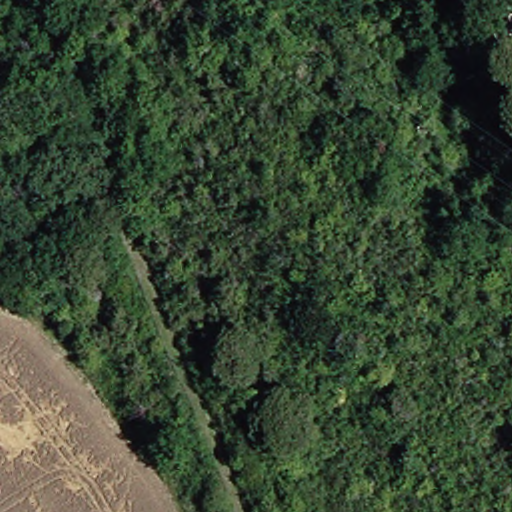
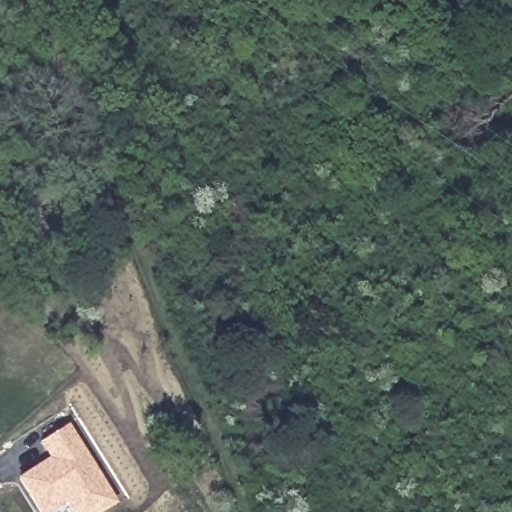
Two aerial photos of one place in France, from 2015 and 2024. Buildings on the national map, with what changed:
new [(103,512),(69,512),(64,504),(50,512),(34,512),(14,478),(47,457),(37,442),(68,422),(117,504),(103,512)]

